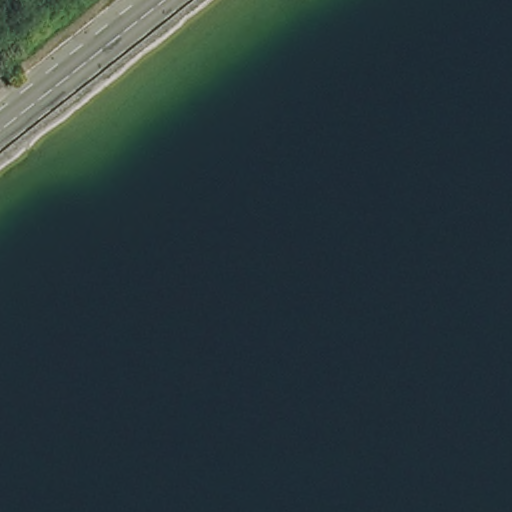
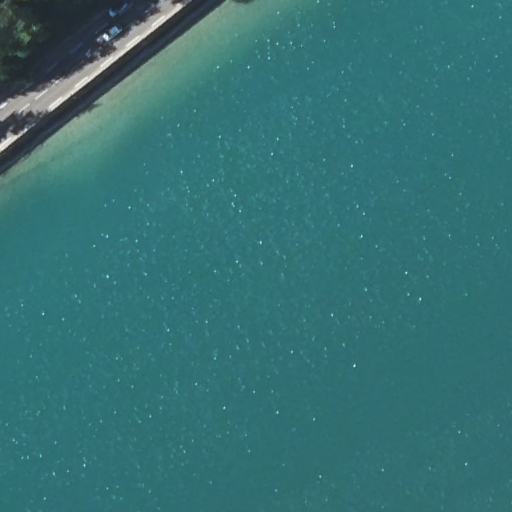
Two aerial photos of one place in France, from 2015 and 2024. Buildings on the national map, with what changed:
unchanged [(0,89),(0,74),(7,84),(0,89)]

